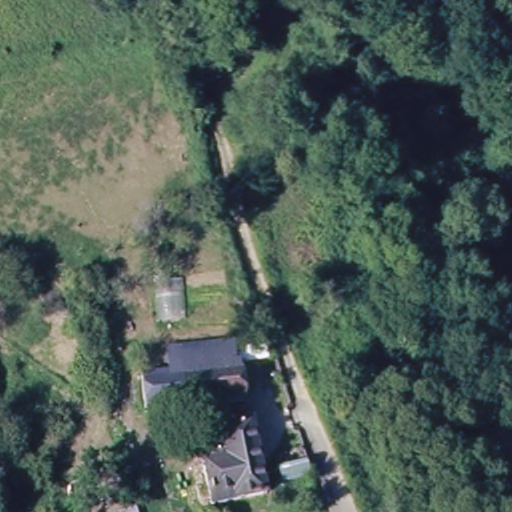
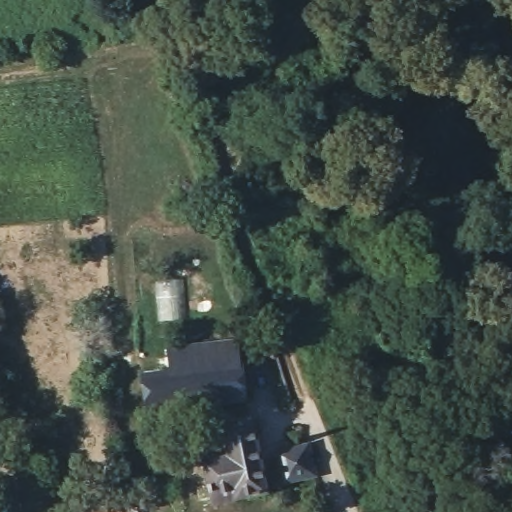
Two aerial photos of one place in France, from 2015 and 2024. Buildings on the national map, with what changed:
unchanged [(247,403),(145,416),(143,355),(244,341),(247,403)]
unchanged [(212,507),(211,502),(194,505),(192,495),(205,490),(199,469),(219,463),(210,432),(245,421),(267,488),(212,507)]
unchanged [(320,467),(290,478),(285,462),(314,452),(320,467)]

